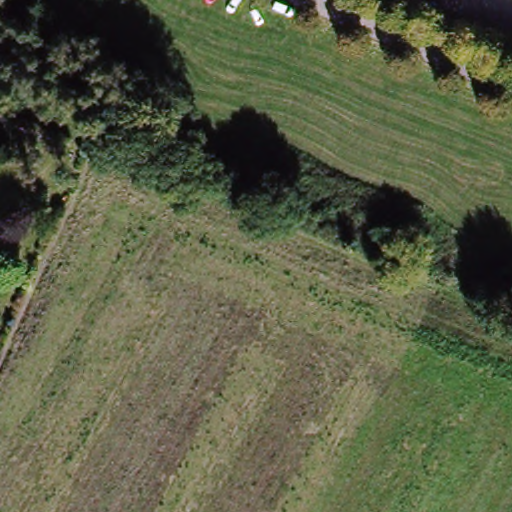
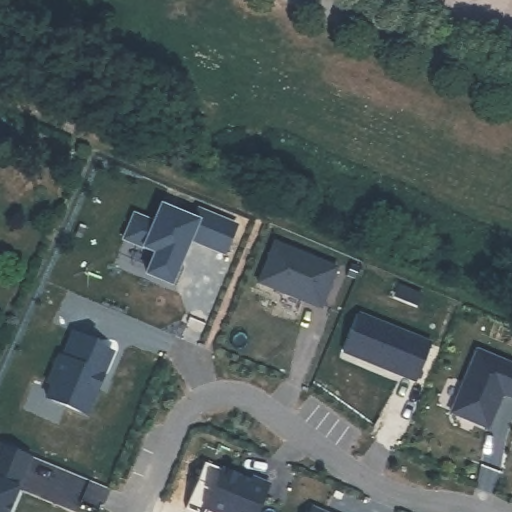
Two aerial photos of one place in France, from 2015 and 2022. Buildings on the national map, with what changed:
new [(134,212),(154,221),(161,203),(194,218),(198,208),(236,224),(224,252),(187,236),(178,258),(180,259),(170,282),(146,271),(155,250),(123,237),(134,212)]
new [(275,241),(337,268),(320,308),(258,282),(275,241)]
new [(359,314),(431,344),(415,383),(343,352),(359,314)]
new [(86,414),(47,397),(53,384),(47,382),(58,356),(62,357),(73,332),(99,343),(97,345),(113,352),(102,376),(97,389),(86,414)]
new [(512,367),(512,400),(502,395),(487,430),(451,414),(477,352),(512,367)]
new [(31,457),(24,472),(17,488),(11,503),(8,502),(4,512),(0,512),(0,444),(31,457)]
new [(251,480),(253,476),(268,483),(256,512),(217,512),(206,507),(222,468),(251,480)]
new [(318,512),(311,512),(313,509),(318,512)]

